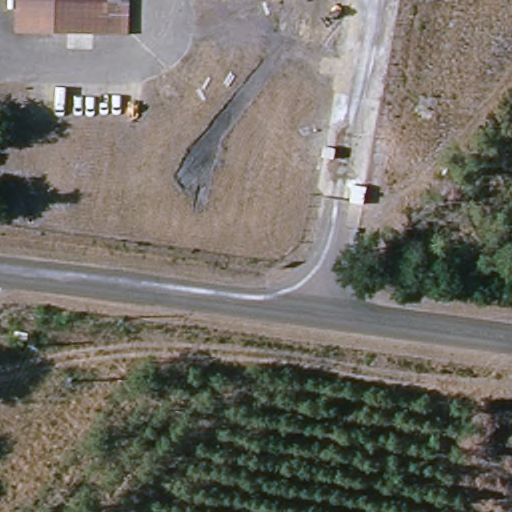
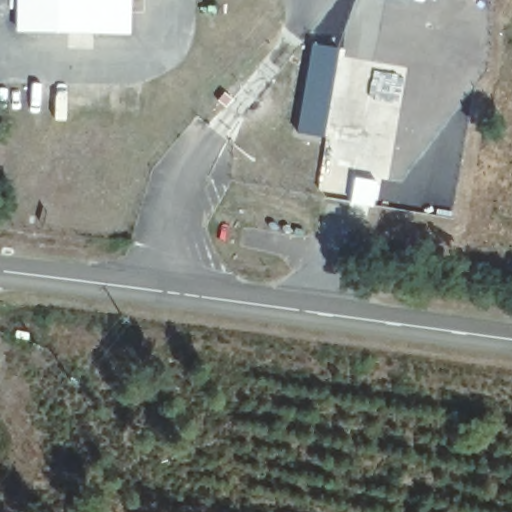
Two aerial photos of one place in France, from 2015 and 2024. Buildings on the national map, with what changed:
unchanged [(125,0),(126,29),(19,33),(18,0),(125,0)]
new [(323,136),(297,132),(313,44),(338,49),(323,136)]
demolished [(54,325),(53,352),(31,352),(31,324),(54,325)]

